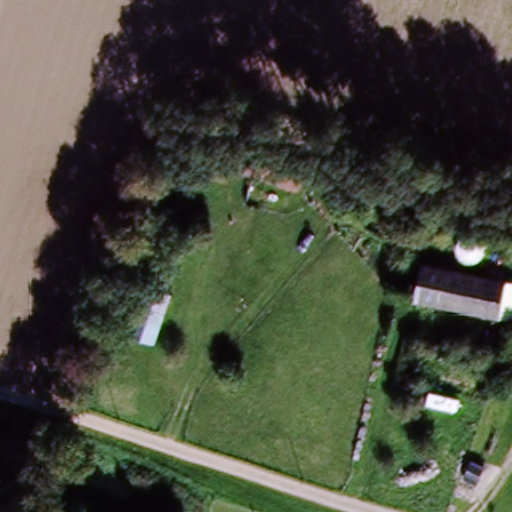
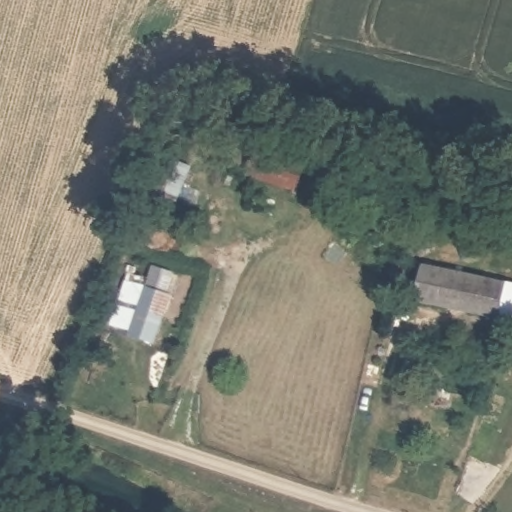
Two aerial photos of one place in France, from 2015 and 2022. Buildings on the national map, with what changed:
unchanged [(306,160),(298,186),(251,173),(260,147),(306,160)]
unchanged [(416,301),(424,268),(503,286),(512,289),(512,324),(497,321),(416,301)]
unchanged [(172,298),(154,346),(130,337),(149,290),(172,298)]

